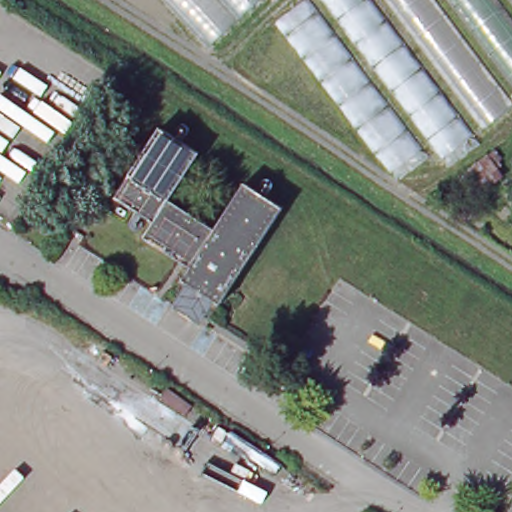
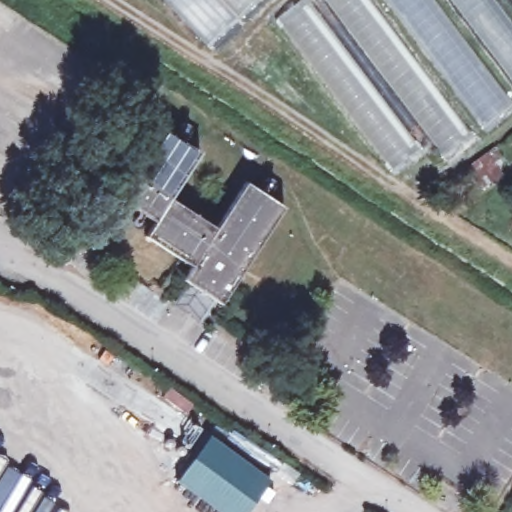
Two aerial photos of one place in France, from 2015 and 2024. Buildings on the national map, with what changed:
unchanged [(174,0),(260,0),(215,42),(174,0)]
unchanged [(512,0),(512,106),(442,158),(433,145),(392,165),(277,18),(301,0),(512,0)]
unchanged [(186,275),(195,263),(149,233),(158,217),(122,191),(167,121),(205,148),(175,195),(220,224),(250,179),(288,204),(224,300),(186,275)]
unchanged [(495,151),(509,175),(487,191),(478,179),(470,186),(472,190),(461,200),(449,186),(472,169),(495,151)]
unchanged [(77,228),(86,234),(80,242),(72,236),(77,228)]
unchanged [(224,300),(210,322),(208,321),(174,299),(172,297),(186,275),(224,300)]
new [(208,435),(268,480),(245,512),(218,512),(175,482),(208,435)]

